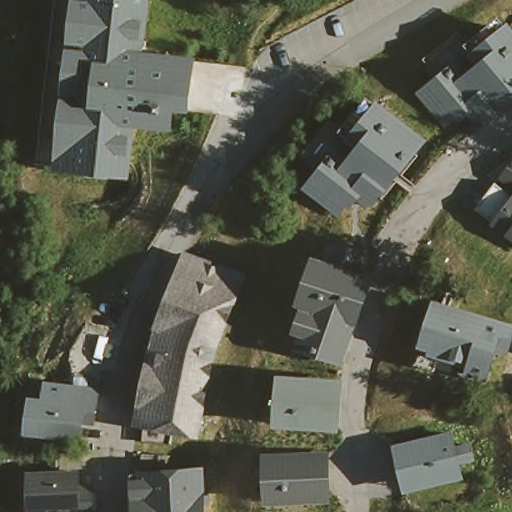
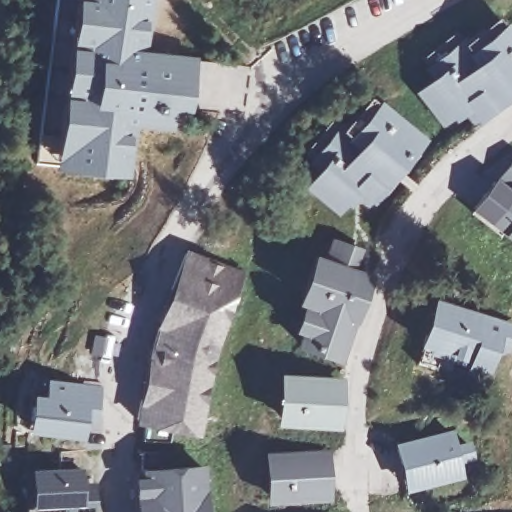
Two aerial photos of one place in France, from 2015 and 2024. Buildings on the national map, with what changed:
unchanged [(156,51),(153,51),(152,61),(203,66),(200,92),(185,90),(183,106),(180,134),(144,130),(138,182),(105,179),(45,171),(66,0),(159,0),(153,46),(157,47),(156,51)]
unchanged [(454,126),(427,93),(444,78),(437,70),(430,60),(458,36),(464,31),(470,39),(472,41),(473,42),(477,40),(487,33),(495,41),(512,28),(512,100),(501,109),(482,123),(472,110),(454,126)]
unchanged [(246,70),(241,113),(183,106),(185,90),(200,92),(203,66),(246,70)]
unchanged [(352,196),(338,213),(305,187),(318,171),(308,163),(299,156),(328,120),(337,127),(339,129),(351,115),(360,122),(375,105),(418,140),(380,186),(364,205),(352,196)]
unchanged [(472,209),(493,181),(512,159),(512,240),(488,223),(472,209)]
unchanged [(361,246),(353,269),(370,274),(342,355),(302,341),(315,301),(310,299),(323,258),(325,259),(334,236),(361,246)]
unchanged [(160,323),(166,304),(172,286),(187,251),(242,272),(211,357),(197,429),(172,424),(170,439),(145,437),(147,418),(137,417),(142,397),(150,360),(153,341),(160,323)]
unchanged [(512,324),(508,338),(497,334),(486,367),(470,361),(470,358),(455,353),(457,346),(440,341),(435,359),(417,353),(433,303),(446,307),(449,298),(512,319),(512,324)]
unchanged [(345,374),(340,426),(271,424),(271,371),(345,374)]
unchanged [(100,385),(97,412),(86,411),(82,433),(44,428),(49,379),(100,385)]
unchanged [(460,458),(473,455),(477,467),(462,471),(466,485),(412,498),(402,455),(455,443),(460,458)]
unchanged [(320,455),(322,498),(272,499),(272,456),(320,455)]
unchanged [(143,477),(142,477),(142,459),(165,460),(163,475),(202,474),(203,499),(208,499),(208,507),(203,507),(204,512),(146,512),(143,477)]
unchanged [(77,474),(70,481),(83,495),(67,512),(53,512),(33,492),(63,461),(77,474)]

